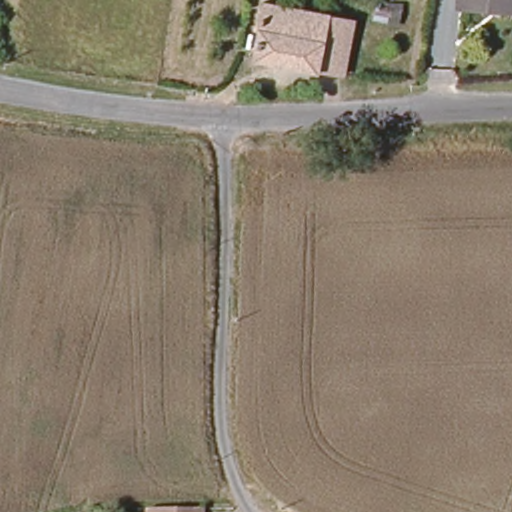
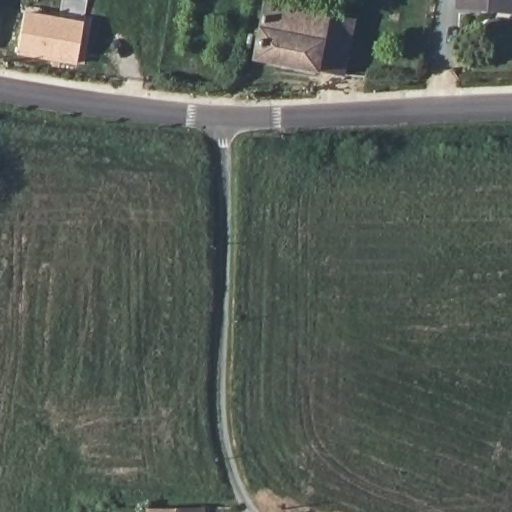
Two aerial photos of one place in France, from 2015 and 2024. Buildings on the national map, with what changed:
unchanged [(491,13),(463,11),(464,0),(512,0),(512,15),(491,13)]
unchanged [(349,76),(260,59),(272,4),(359,21),(349,76)]
new [(19,56),(26,12),(84,22),(76,66),(19,56)]

